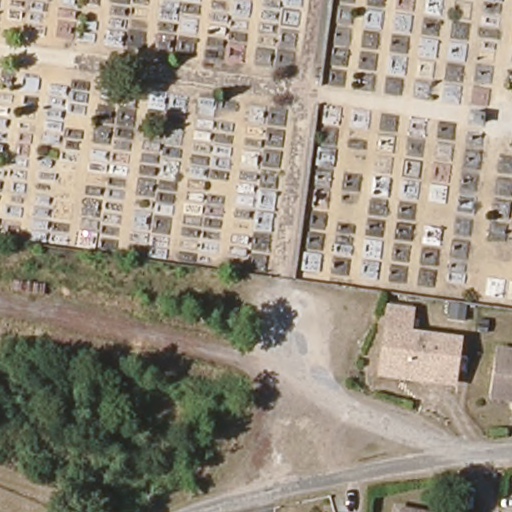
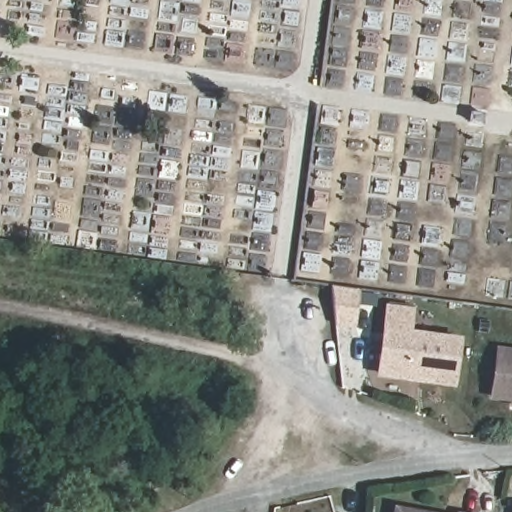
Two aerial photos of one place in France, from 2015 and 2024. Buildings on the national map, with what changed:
new [(376,292),(374,306),(359,304),(356,328),(336,325),(333,287),(376,292)]
unchanged [(386,303),(414,308),(411,327),(461,334),(456,384),(376,375),(386,303)]
unchanged [(511,398),(494,396),(501,351),(512,352),(512,405),(510,405),(511,398)]

